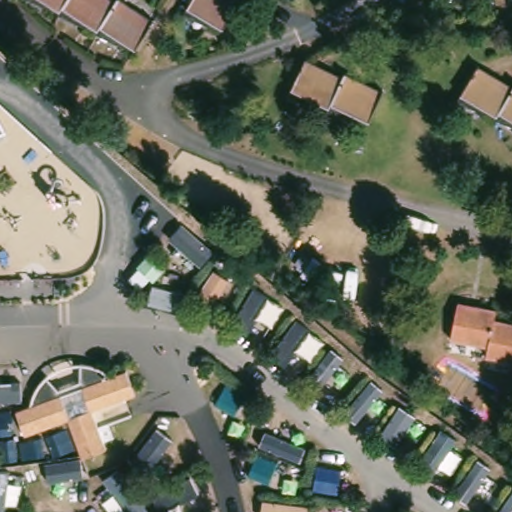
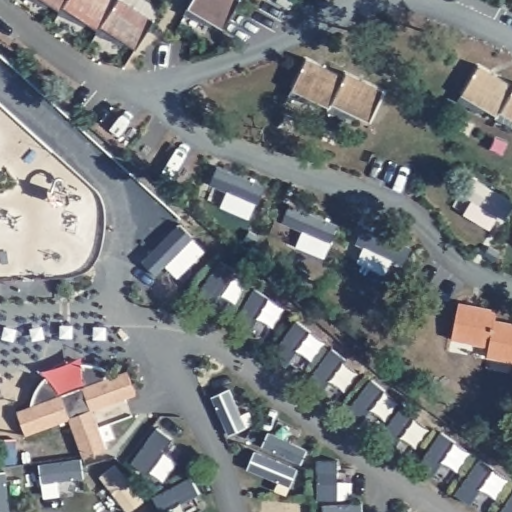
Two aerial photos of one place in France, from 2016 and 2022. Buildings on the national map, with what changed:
unchanged [(116,0),(122,0),(150,16),(134,47),(100,29),(99,34),(62,14),(58,19),(19,0),(111,0),(115,2),(116,0)]
unchanged [(219,35),(180,13),(188,0),(233,0),(237,2),(219,35)]
unchanged [(337,82),(341,74),(384,98),(370,126),(332,105),(327,110),(285,89),(300,61),(337,82)]
unchanged [(512,87),(512,123),(495,113),(491,115),(457,95),(471,69),(507,88),(512,87)]
unchanged [(484,351),(450,343),(455,311),(492,317),(491,326),(512,330),(512,365),(482,360),(484,351)]
unchanged [(95,369),(101,373),(106,378),(109,381),(121,376),(130,401),(87,417),(104,459),(79,466),(65,425),(20,440),(12,417),(29,410),(31,398),(34,388),(36,384),(40,381),(48,374),(57,369),(65,367),(73,365),(79,366),(89,367),(95,369)]

